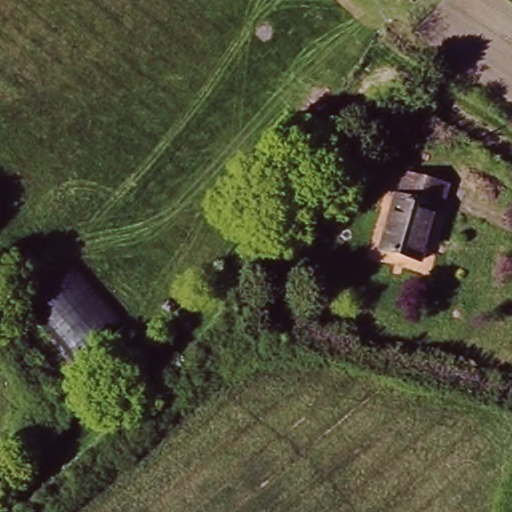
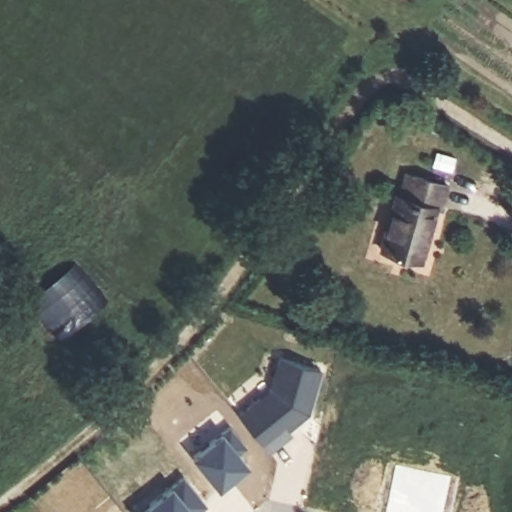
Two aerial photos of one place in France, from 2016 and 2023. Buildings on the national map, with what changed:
unchanged [(377,251),(405,200),(425,210),(442,179),(475,197),(459,228),(440,219),(413,270),(377,251)]
unchanged [(30,302),(74,264),(124,323),(77,359),(30,302)]
new [(271,389),(280,357),(321,369),(309,413),(280,436),(283,440),(269,451),(239,415),(271,389)]
new [(230,426),(247,447),(236,455),(245,467),(219,488),(192,456),(230,426)]
new [(198,512),(141,512),(184,476),(207,505),(198,512)]

